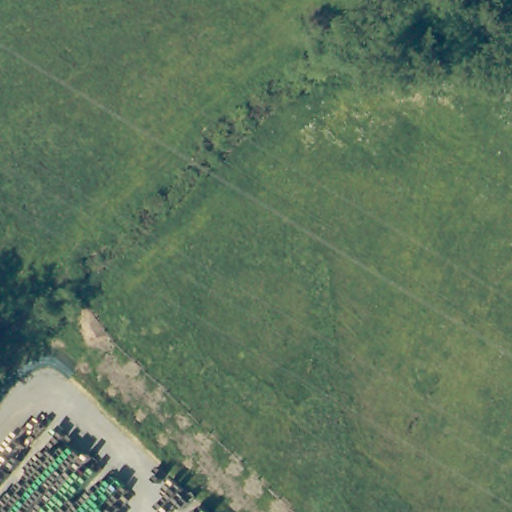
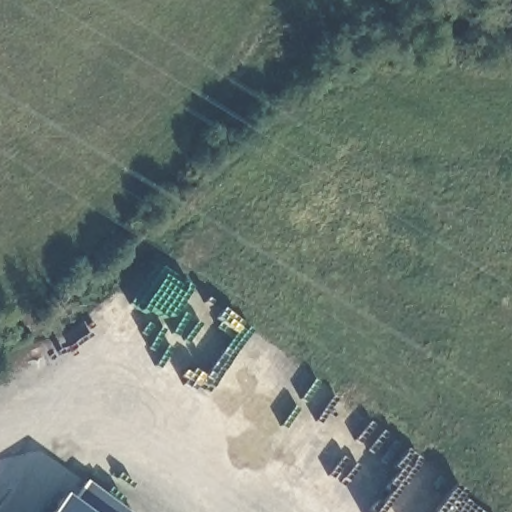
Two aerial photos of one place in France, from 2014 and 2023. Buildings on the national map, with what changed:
new [(60,496),(70,504),(86,481),(126,512),(49,512),(60,496)]

